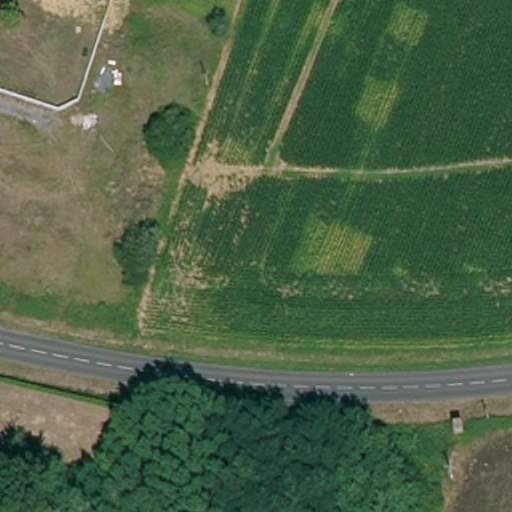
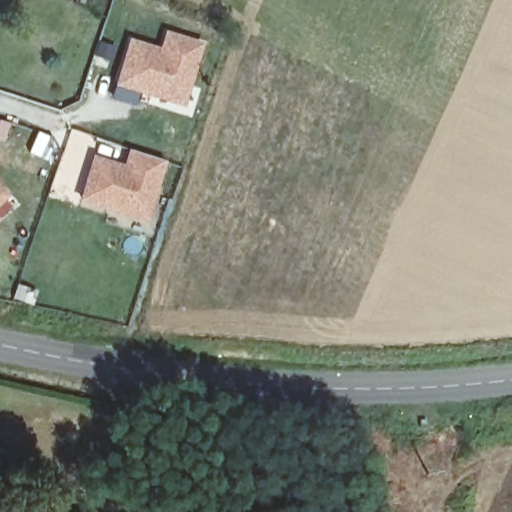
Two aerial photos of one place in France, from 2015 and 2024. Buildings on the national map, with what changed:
new [(130,45),(160,57),(167,39),(201,51),(178,111),(134,94),(128,109),(109,101),(114,87),(130,45)]
new [(94,161),(126,171),(131,154),(166,164),(147,223),(81,203),(94,161)]
new [(0,203),(0,184),(10,195),(0,203)]

